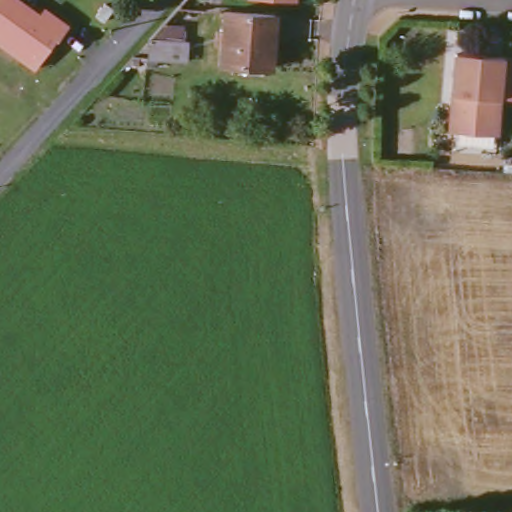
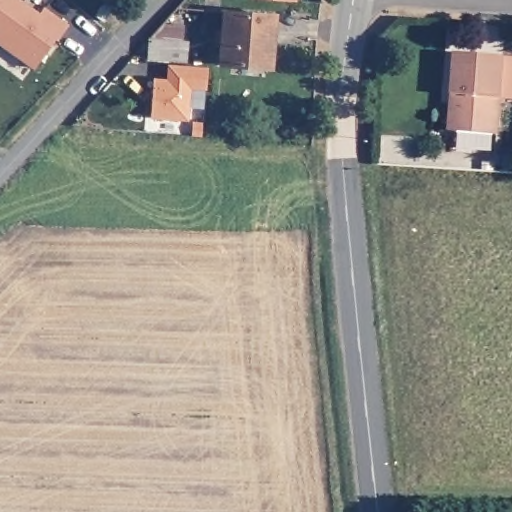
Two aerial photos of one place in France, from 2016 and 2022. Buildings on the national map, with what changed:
unchanged [(0,0),(24,0),(41,12),(46,6),(71,24),(59,40),(56,39),(35,69),(0,44),(0,0)]
unchanged [(104,20),(97,16),(98,10),(101,7),(102,7),(105,4),(112,9),(104,20)]
unchanged [(276,15),(272,66),(222,63),(223,45),(217,45),(219,33),(224,33),(226,12),(276,15)]
unchanged [(187,60),(156,58),(156,66),(147,66),(150,39),(151,36),(162,23),(184,25),(182,41),(189,42),(187,60)]
unchanged [(452,97),(453,55),(500,57),(497,134),(457,132),(450,131),(452,97)]
unchanged [(132,57),(138,57),(138,65),(125,65),(132,57)]
new [(191,88),(190,120),(152,118),(154,79),(167,79),(168,65),(207,67),(206,89),(191,88)]

